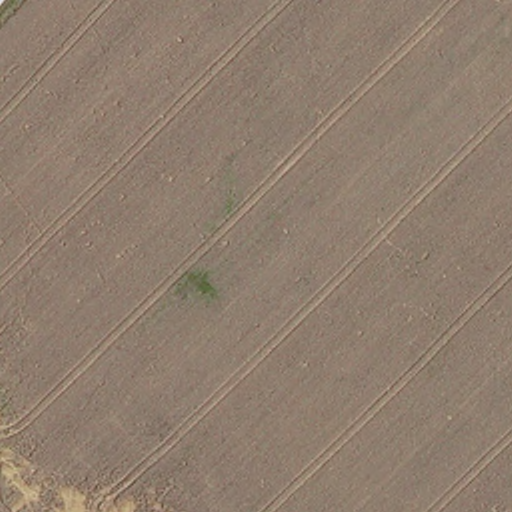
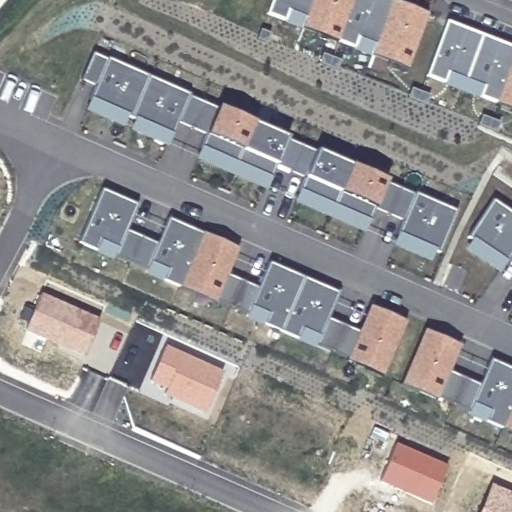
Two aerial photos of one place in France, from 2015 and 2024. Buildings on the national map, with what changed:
new [(286,18),(268,10),(272,0),(399,0),(430,12),(408,66),(390,60),(355,45),(321,31),(286,18)]
new [(445,81),(427,74),(448,20),(512,44),(512,107),(480,95),(445,81)]
new [(393,244),(397,235),(403,220),(375,208),(368,222),(365,230),(295,200),(299,191),(305,176),(278,165),(271,179),(267,187),(198,155),(201,147),(208,134),(180,120),(173,135),(170,143),(88,106),(91,98),(97,84),(84,77),(95,51),(110,57),(110,55),(192,92),(191,95),(220,107),(221,105),(290,136),(289,139),(317,151),(318,149),(388,180),(387,182),(415,195),(416,192),(457,211),(439,254),(435,251),(430,260),(393,244)]
new [(351,355),(321,340),(320,343),(302,335),(269,320),(251,312),(252,310),(221,296),(220,298),(202,290),(169,275),(151,267),(152,265),(121,251),(120,253),(102,245),(85,237),(109,184),(145,200),(133,225),(164,239),(175,214),(245,245),(233,270),(263,283),(275,258),(345,289),(332,315),(363,328),(375,303),(410,318),(386,372),(369,365),(350,356),(351,355)]
new [(501,268),(468,245),(473,237),(470,235),(495,197),(512,208),(512,253),(507,260),(501,268)]
new [(81,356),(25,331),(41,293),(100,320),(81,356)]
new [(471,410),(472,409),(441,395),(440,397),(422,388),(405,381),(429,327),(465,344),(453,370),(483,382),(495,357),(512,365),(512,429),(489,419),(471,410)]
new [(205,415),(164,397),(166,390),(147,382),(165,345),(222,371),(205,415)]
new [(430,506),(377,483),(392,443),(446,465),(430,506)]
new [(490,484),(512,494),(512,512),(477,512),(490,484)]

